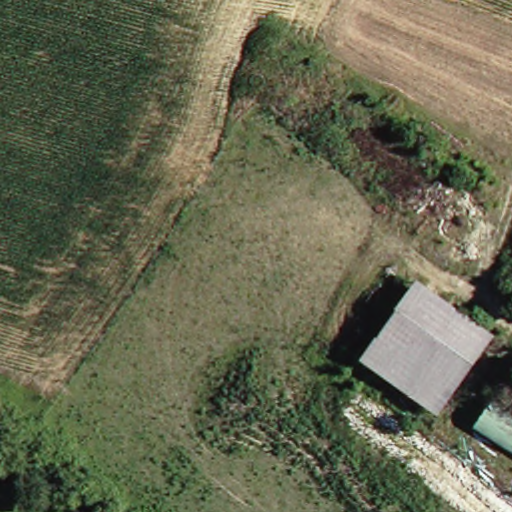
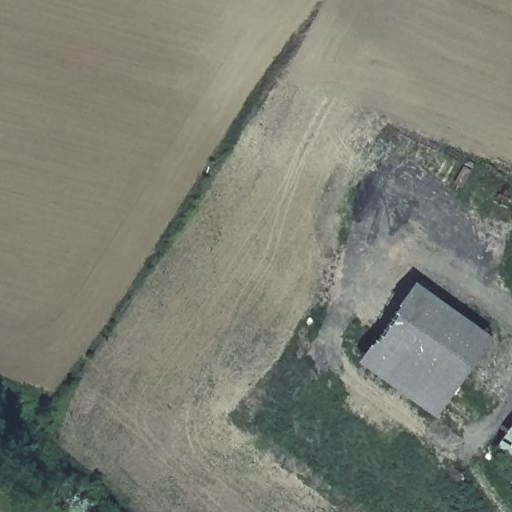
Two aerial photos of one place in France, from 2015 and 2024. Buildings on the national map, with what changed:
unchanged [(358,360),(414,282),(488,336),(431,414),(358,360)]
unchanged [(492,397),(512,410),(512,460),(470,433),(492,397)]

